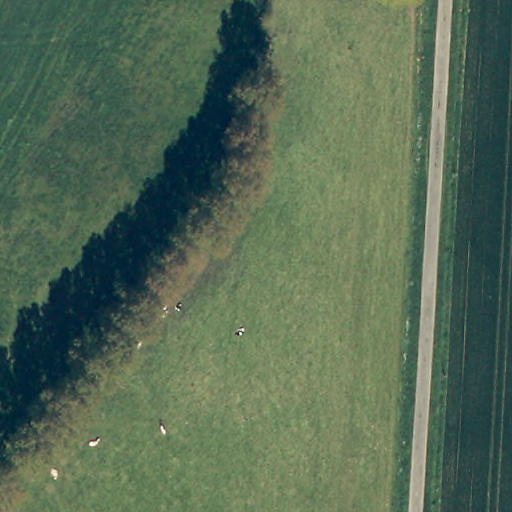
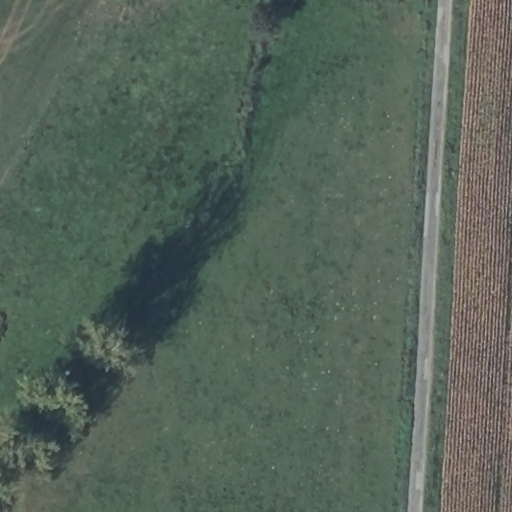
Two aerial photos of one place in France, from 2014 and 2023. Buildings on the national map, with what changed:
[]

